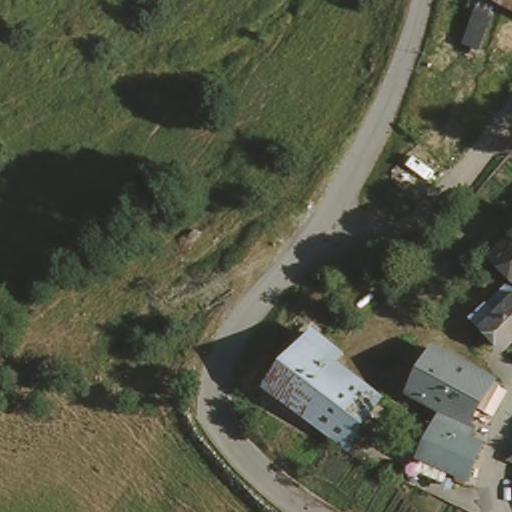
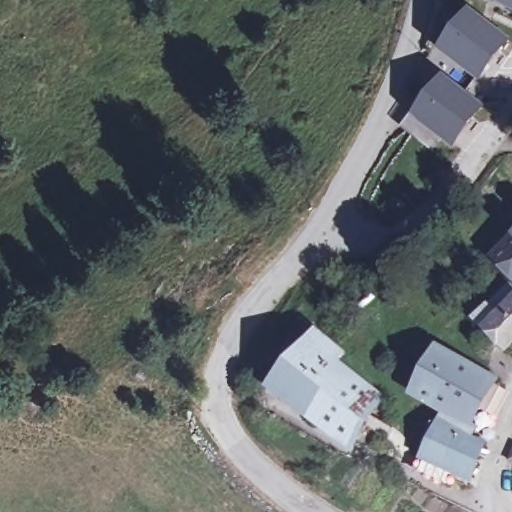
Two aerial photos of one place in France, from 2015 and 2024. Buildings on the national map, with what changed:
new [(486,0),(491,0),(490,2),(486,0)]
unchanged [(490,2),(491,0),(512,0),(512,13),(490,2)]
new [(512,39),(512,42),(480,83),(438,51),(471,9),(512,39)]
new [(487,107),(454,147),(412,116),(445,74),(487,107)]
demolished [(409,150),(438,169),(424,187),(397,170),(409,150)]
unchanged [(511,282),(491,264),(512,242),(512,283),(511,282)]
unchanged [(499,352),(481,334),(512,302),(512,339),(499,352)]
unchanged [(338,353),(329,364),(369,397),(343,434),(291,397),(273,381),(311,336),(338,353)]
unchanged [(480,451),(471,481),(424,455),(434,421),(437,412),(406,396),(426,351),(480,379),(458,423),(468,428),(466,439),(481,448),(480,451)]
unchanged [(509,460),(512,448),(512,460),(509,460)]

